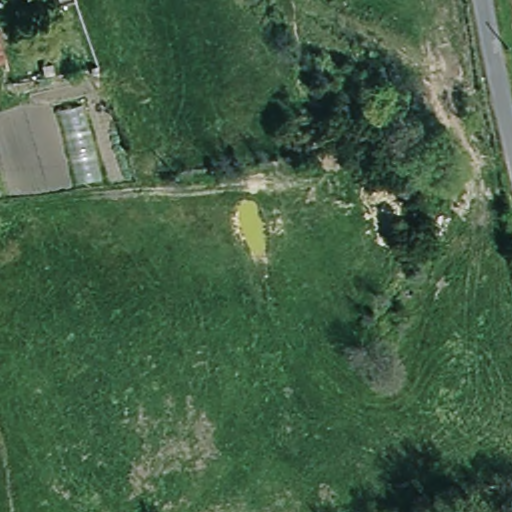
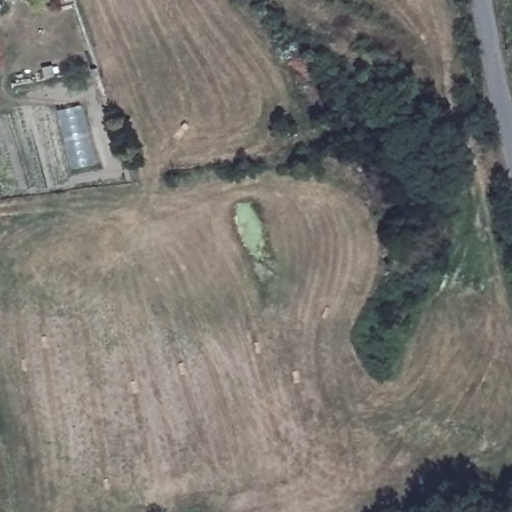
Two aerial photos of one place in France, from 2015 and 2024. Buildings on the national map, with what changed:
unchanged [(72,1),(56,4),(55,0),(72,0),(72,1)]
unchanged [(59,75),(51,77),(44,79),(44,78),(41,66),(56,62),(59,75)]
unchanged [(91,74),(90,68),(97,66),(98,73),(91,74)]
unchanged [(98,178),(76,183),(60,109),(83,104),(98,178)]

